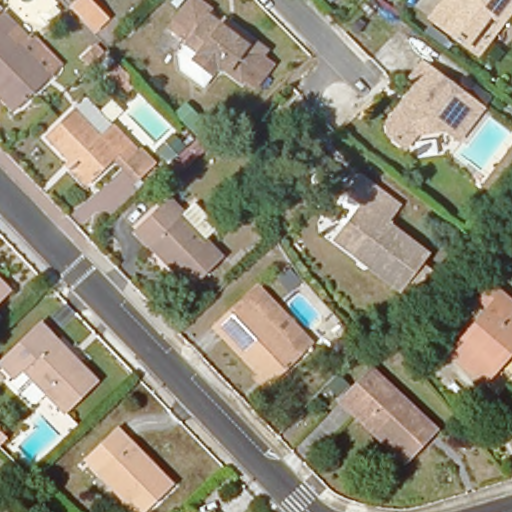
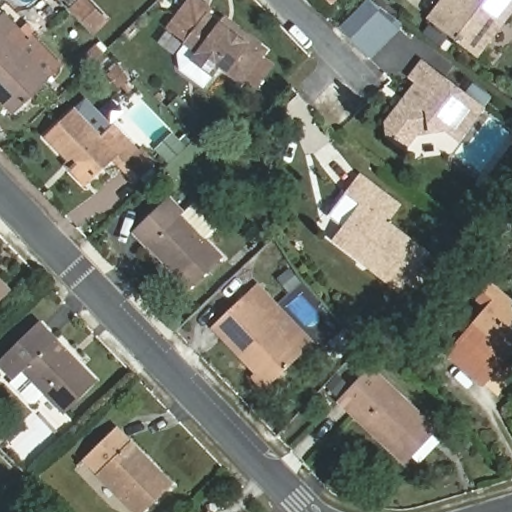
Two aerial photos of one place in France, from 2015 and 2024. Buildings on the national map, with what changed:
unchanged [(87,0),(107,20),(93,33),(69,8),(77,0),(87,0)]
unchanged [(257,88),(244,79),(242,83),(220,65),(212,75),(203,87),(181,69),(179,54),(187,44),(168,29),(191,0),(194,0),(209,11),(207,14),(220,24),(235,34),(237,29),(266,50),(262,56),(275,65),(265,79),(257,88)]
new [(371,59),(340,29),(367,0),(370,0),(400,30),(371,59)]
unchanged [(512,0),(512,12),(478,56),(429,18),(440,4),(445,8),(451,0),(512,0)]
unchanged [(61,65),(17,108),(0,91),(0,18),(5,14),(29,39),(32,35),(61,65)]
unchanged [(482,109),(458,139),(446,129),(416,134),(405,148),(389,136),(388,124),(420,84),(412,78),(423,64),(482,109)]
unchanged [(117,67),(127,78),(117,88),(107,76),(117,67)]
unchanged [(153,164),(140,178),(126,164),(117,156),(90,184),(45,138),(87,98),(101,113),(111,103),(120,114),(111,123),(138,151),(140,149),(153,164)]
unchanged [(186,106),(201,121),(191,130),(177,115),(186,106)]
unchanged [(425,257),(398,292),(368,269),(373,263),(338,237),(361,208),(345,195),(358,178),(398,208),(385,225),(425,257)]
unchanged [(180,214),(182,215),(194,203),(217,227),(205,239),(224,259),(191,289),(149,245),(147,246),(133,232),(169,198),(173,203),(182,212),(180,214)]
unchanged [(289,272),(298,283),(287,292),(278,280),(289,272)]
unchanged [(10,291),(0,301),(0,281),(10,291)]
unchanged [(256,284),(314,344),(302,356),(244,297),(256,284)]
unchanged [(449,360),(490,313),(480,304),(492,290),(512,308),(512,348),(492,372),(496,374),(483,389),(449,360)]
unchanged [(269,387),(213,327),(244,297),(302,356),(269,387)]
unchanged [(44,323),(102,383),(71,414),(52,394),(41,404),(36,404),(16,383),(20,379),(4,362),(44,323)]
unchanged [(371,369),(435,429),(408,458),(345,398),(371,369)]
unchanged [(84,459),(117,428),(172,486),(146,512),(136,512),(84,459)]
unchanged [(5,440),(0,444),(0,436),(5,440)]

